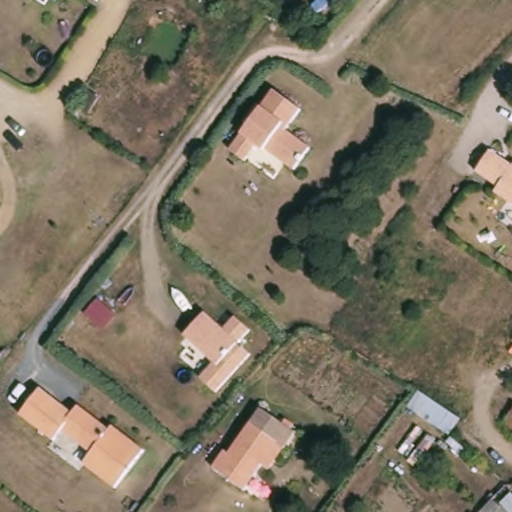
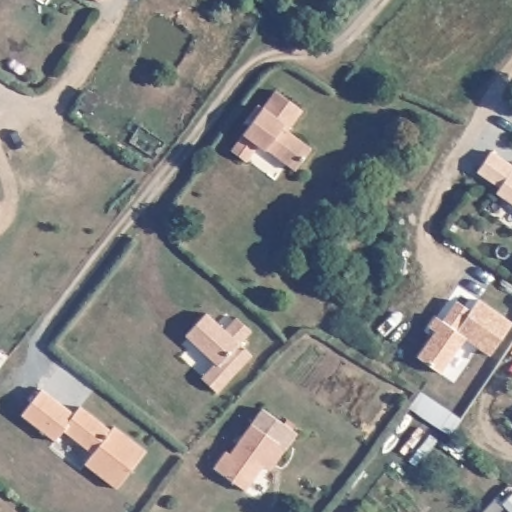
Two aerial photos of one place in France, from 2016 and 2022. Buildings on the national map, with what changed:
unchanged [(267,106),(280,89),(307,109),(291,130),(315,148),(300,169),(271,147),(269,149),(262,144),(250,160),(235,149),(256,121),(252,117),(263,102),(267,106)]
unchanged [(512,163),(512,201),(496,190),(500,185),(478,168),(492,148),(512,163)]
new [(436,328),(429,323),(436,313),(443,318),(458,298),(472,308),(480,297),(512,319),(512,321),(491,353),(466,336),(442,371),(418,354),(436,328)]
unchanged [(205,314),(207,312),(218,322),(225,329),(237,316),(252,330),(240,343),(252,354),(248,359),(217,391),(201,376),(216,361),(186,333),(205,314)]
unchanged [(41,387),(74,412),(80,404),(111,428),(114,424),(146,449),(116,486),(82,460),(91,449),(61,426),(53,437),(21,413),(41,387)]
unchanged [(450,435),(409,407),(421,390),(462,418),(450,435)]
unchanged [(264,464),(245,489),(214,467),(226,450),(230,453),(263,407),(297,432),(285,448),(271,468),(264,464)]
unchanged [(504,420),(512,410),(512,426),(504,420)]

